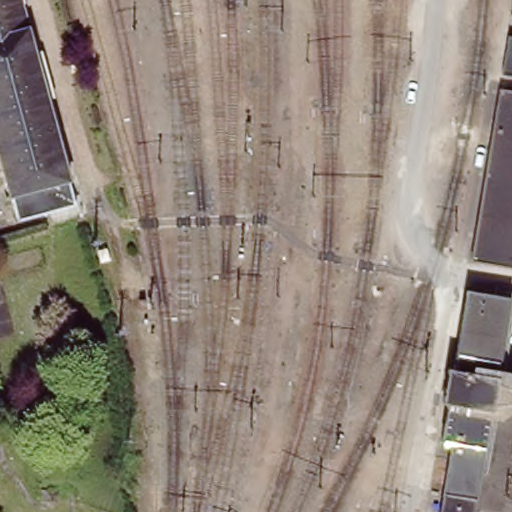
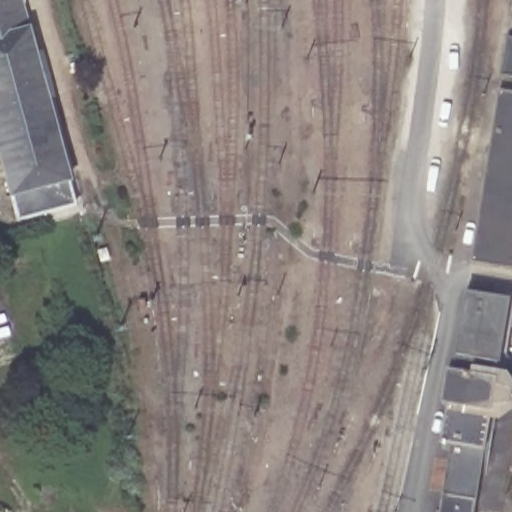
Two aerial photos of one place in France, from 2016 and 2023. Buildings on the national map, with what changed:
unchanged [(0,155),(0,0),(21,0),(74,200),(16,215),(0,155)]
unchanged [(512,40),(512,77),(502,76),(507,39),(512,40)]
unchanged [(500,90),(512,93),(512,268),(471,262),(500,90)]
unchanged [(457,448),(442,445),(450,407),(442,406),(446,371),(455,373),(467,288),(510,300),(497,372),(506,374),(512,379),(512,413),(500,421),(491,420),(484,449),(472,512),(441,512),(457,448)]

